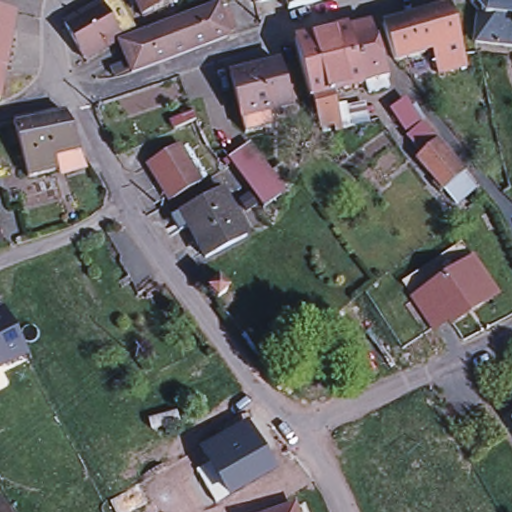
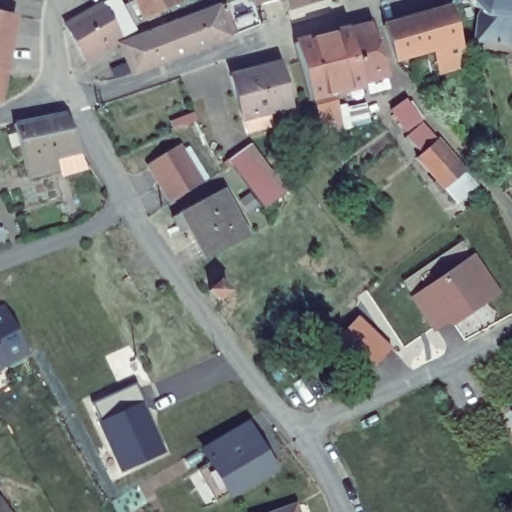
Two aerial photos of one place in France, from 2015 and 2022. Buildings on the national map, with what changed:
unchanged [(117,0),(136,34),(85,64),(65,29),(117,0)]
unchanged [(137,13),(131,15),(128,7),(134,5),(132,0),(174,0),(177,7),(141,22),(137,13)]
unchanged [(254,0),(269,0),(255,4),(254,0)]
unchanged [(286,0),(321,0),(289,10),(286,0)]
unchanged [(477,22),(480,15),(470,4),(470,0),(512,0),(512,49),(475,45),(477,22)]
unchanged [(449,79),(445,69),(435,71),(428,74),(425,67),(433,65),(428,49),(390,60),(377,25),(445,5),(463,62),(466,74),(449,79)]
unchanged [(231,27),(225,30),(229,41),(132,78),(120,49),(223,9),(231,27)]
unchanged [(13,14),(0,94),(0,12),(13,14)]
unchanged [(371,23),(390,76),(386,78),(389,87),(369,93),(366,83),(363,84),(347,29),(371,23)]
unchanged [(344,127),(336,129),(335,124),(320,127),(312,97),(310,98),(294,42),(313,37),(347,29),(363,84),(334,91),(335,95),(344,127)]
unchanged [(245,132),(241,117),(230,75),(280,62),(290,105),(268,111),(272,126),(245,132)]
unchanged [(405,99),(420,120),(406,130),(390,109),(405,99)]
unchanged [(67,165),(65,158),(29,167),(20,134),(10,136),(7,125),(16,122),(13,113),(67,103),(81,141),(87,160),(67,165)]
unchanged [(422,121),(465,170),(445,187),(416,157),(422,152),(406,135),(422,121)]
unchanged [(265,211),(228,160),(251,144),(288,195),(265,211)]
unchanged [(180,148),(201,182),(174,199),(152,165),(180,148)]
unchanged [(178,230),(171,215),(222,190),(247,235),(205,257),(190,225),(178,230)]
unchanged [(5,243),(0,244),(0,218),(5,243)]
unchanged [(487,276),(497,290),(485,299),(452,321),(449,317),(435,326),(415,298),(475,257),(487,276)]
unchanged [(1,306),(25,350),(0,364),(0,307),(1,306)]
new [(165,455),(120,475),(96,424),(101,421),(92,404),(135,385),(165,455)]
unchanged [(280,471),(230,501),(199,450),(247,421),(280,471)]
unchanged [(9,512),(0,512),(0,498),(9,512)]
unchanged [(295,506),(297,512),(279,512),(295,506)]

